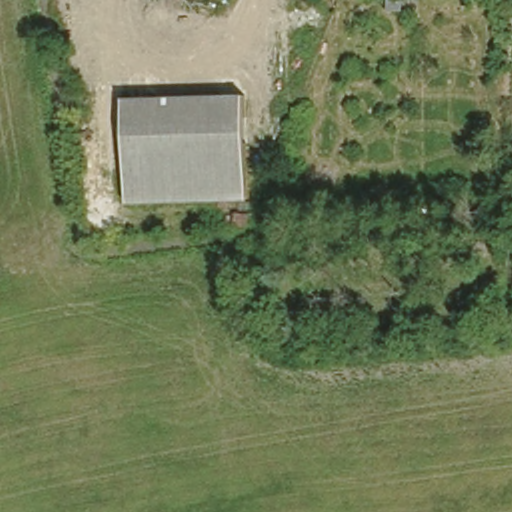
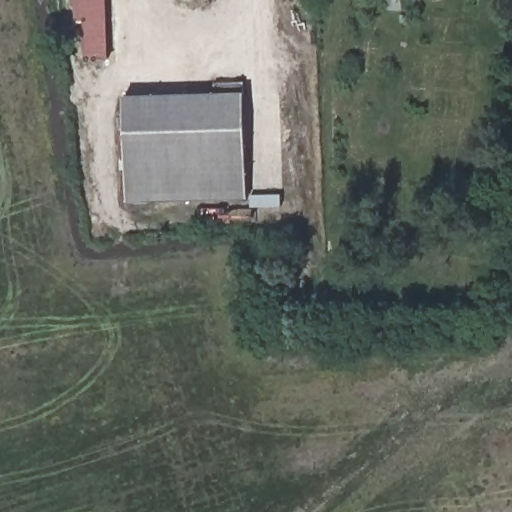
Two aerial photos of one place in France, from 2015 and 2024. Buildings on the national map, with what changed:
new [(83,49),(82,23),(75,23),(74,0),(106,0),(109,61),(89,63),(83,49)]
unchanged [(250,203),(127,207),(127,98),(247,95),(250,203)]

